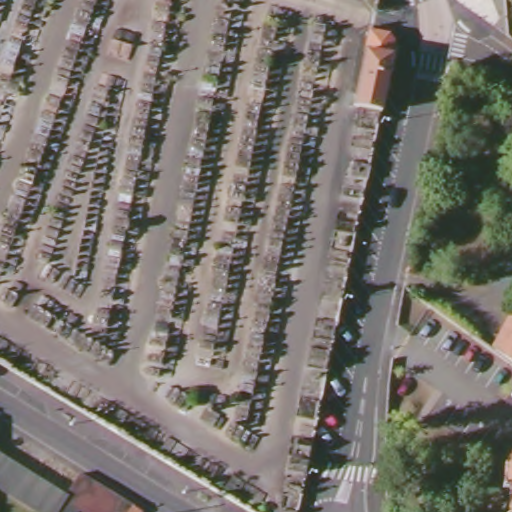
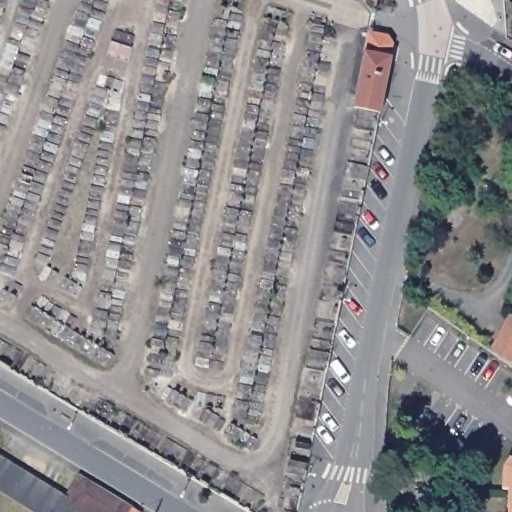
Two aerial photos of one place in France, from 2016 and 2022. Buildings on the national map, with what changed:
unchanged [(400,12),(384,10),(386,0),(398,0),(400,5),(400,12)]
unchanged [(395,48),(385,105),(359,97),(369,44),(395,48)]
unchanged [(512,363),(490,347),(507,315),(512,318),(512,363)]
unchanged [(66,496),(79,477),(135,512),(74,512),(65,506),(62,512),(31,512),(0,493),(0,456),(66,496)]
unchanged [(507,470),(512,463),(512,512),(504,512),(507,470)]

